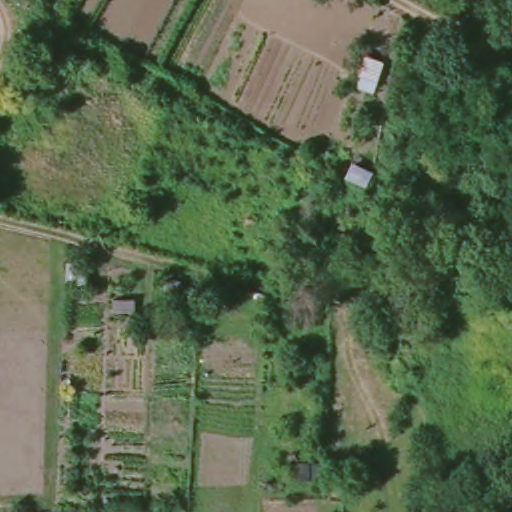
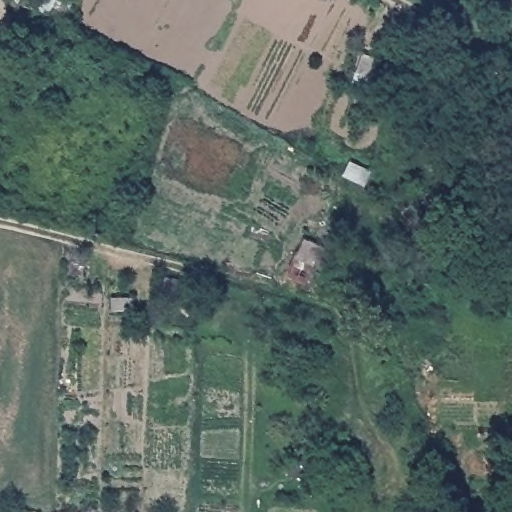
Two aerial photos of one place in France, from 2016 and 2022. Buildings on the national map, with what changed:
unchanged [(63,25),(37,12),(42,0),(77,0),(63,25)]
unchanged [(383,56),(370,91),(348,83),(360,51),(383,56)]
unchanged [(374,173),(365,195),(335,176),(347,156),(374,173)]
unchanged [(330,249),(310,285),(287,277),(303,236),(330,249)]
unchanged [(91,265),(90,285),(64,285),(65,261),(91,265)]
unchanged [(434,268),(435,289),(402,291),(400,268),(434,268)]
unchanged [(318,458),(316,480),(282,479),(284,456),(318,458)]

